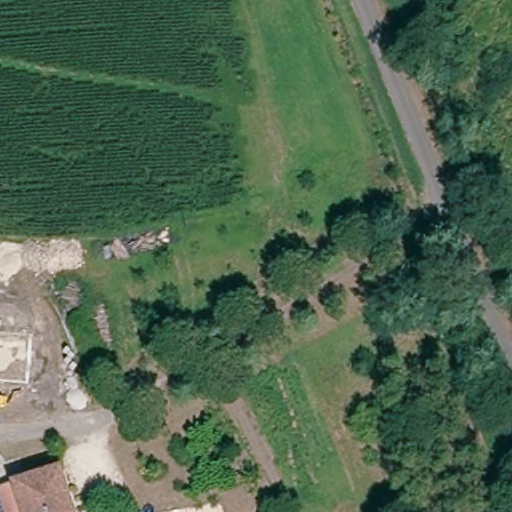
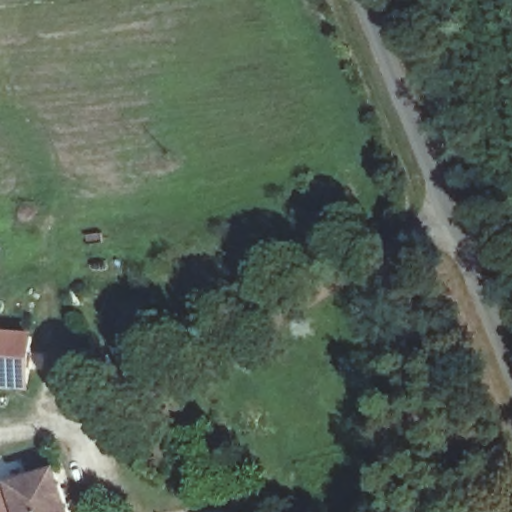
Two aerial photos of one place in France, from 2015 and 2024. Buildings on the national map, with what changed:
new [(31,392),(0,389),(0,331),(36,335),(31,392)]
demolished [(14,404),(0,401),(0,349),(25,356),(14,404)]
unchanged [(7,484),(53,468),(68,512),(0,512),(0,490),(9,487),(7,484)]

